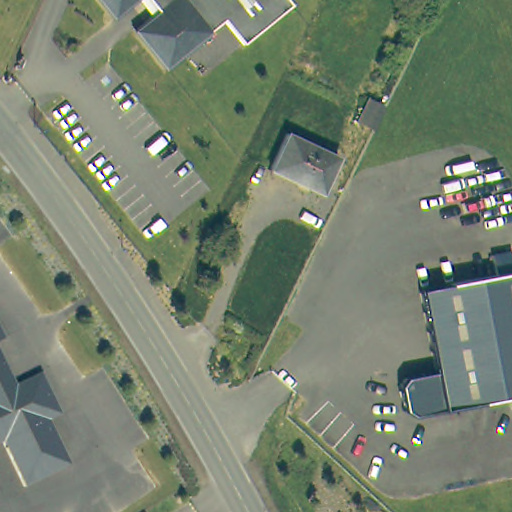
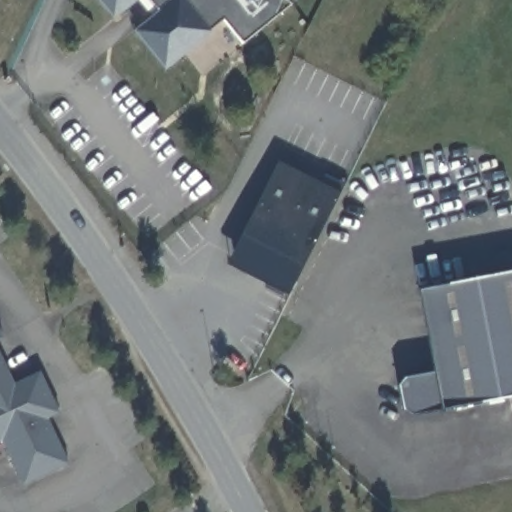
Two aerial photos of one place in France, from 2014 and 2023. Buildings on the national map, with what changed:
unchanged [(111,11),(102,0),(125,0),(111,11)]
unchanged [(290,0),(241,39),(223,16),(163,62),(134,25),(150,12),(140,0),(290,0)]
demolished [(369,123),(352,115),(365,91),(381,100),(369,123)]
demolished [(339,157),(321,192),(269,167),(287,132),(339,157)]
new [(279,162),(321,182),(324,174),(344,184),(342,193),(289,295),(227,264),(279,162)]
unchanged [(401,407),(395,382),(403,373),(433,367),(417,285),(512,269),(512,395),(410,413),(401,407)]
unchanged [(4,339),(0,341),(0,330),(4,339)]
unchanged [(4,442),(0,444),(0,354),(15,384),(41,372),(60,414),(49,419),(70,466),(26,485),(4,442)]

